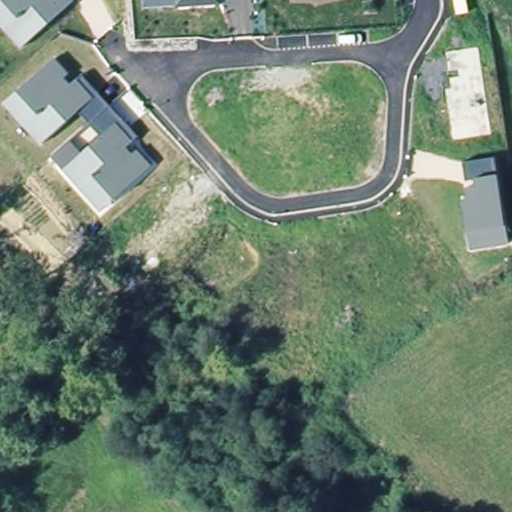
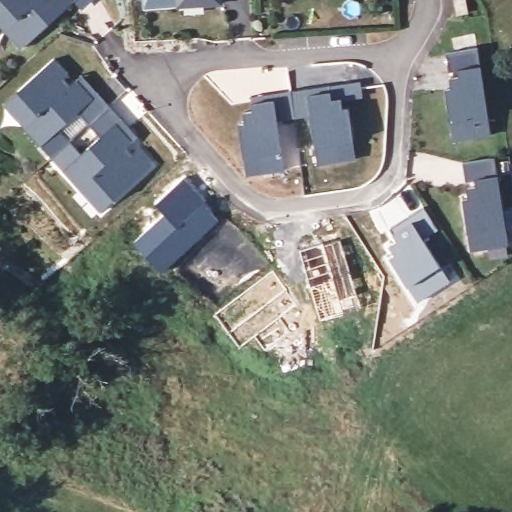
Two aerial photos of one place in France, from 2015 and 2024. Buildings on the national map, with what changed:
unchanged [(0,24),(0,0),(76,0),(20,48),(0,24)]
unchanged [(178,5),(178,0),(220,0),(221,3),(210,3),(178,5)]
new [(450,124),(445,92),(451,91),(449,81),(458,79),(457,73),(448,74),(445,55),(477,50),(491,136),(468,140),(453,143),(450,124)]
unchanged [(70,74),(66,79),(71,84),(81,74),(138,136),(128,146),(134,153),(137,149),(152,165),(101,212),(51,155),(68,139),(81,153),(101,135),(79,111),(42,144),(4,101),(55,56),(70,74)]
new [(240,125),(246,124),(245,114),(254,113),(252,104),(252,97),(291,91),(331,85),(331,93),(332,100),(342,99),(343,109),(350,109),(354,140),(357,159),(342,161),(320,165),(312,116),(295,119),(278,121),(286,170),(263,174),(248,176),(245,157),(240,125)]
unchanged [(497,157),(509,243),(468,248),(462,197),(467,195),(466,183),(476,182),(475,179),(466,180),(462,160),(497,157)]
new [(165,213),(156,203),(185,177),(220,220),(160,275),(132,244),(165,213)]
new [(408,283),(392,256),(397,253),(391,244),(399,239),(395,232),(391,226),(410,214),(426,204),(440,228),(425,237),(451,279),(432,292),(418,299),(408,283)]

